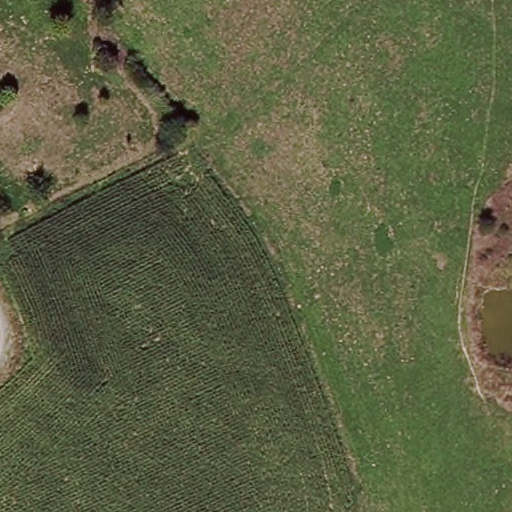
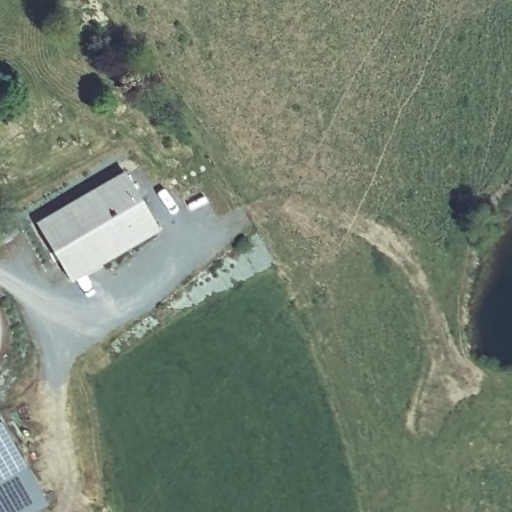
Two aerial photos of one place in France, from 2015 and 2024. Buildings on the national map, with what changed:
new [(71,283),(37,224),(125,171),(160,231),(71,283)]
new [(47,512),(0,512),(0,418),(6,427),(52,509),(47,512)]

